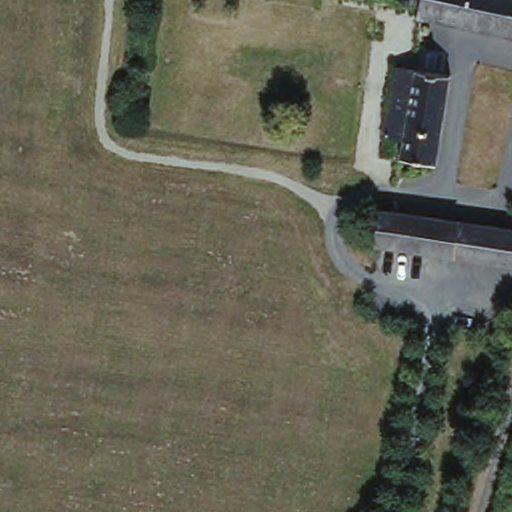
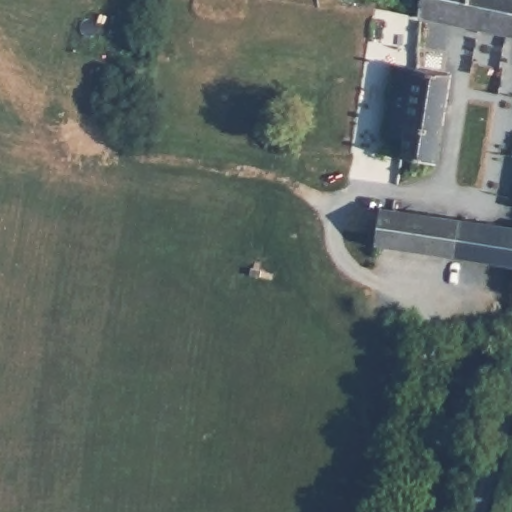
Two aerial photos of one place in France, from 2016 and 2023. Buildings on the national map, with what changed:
unchanged [(425,6),(405,1),(405,0),(512,0),(512,32),(423,15),(425,6)]
unchanged [(457,74),(446,161),(418,156),(406,154),(409,134),(388,130),(394,63),(417,67),(457,74)]
unchanged [(379,212),(388,213),(512,237),(512,274),(373,246),(379,212)]

